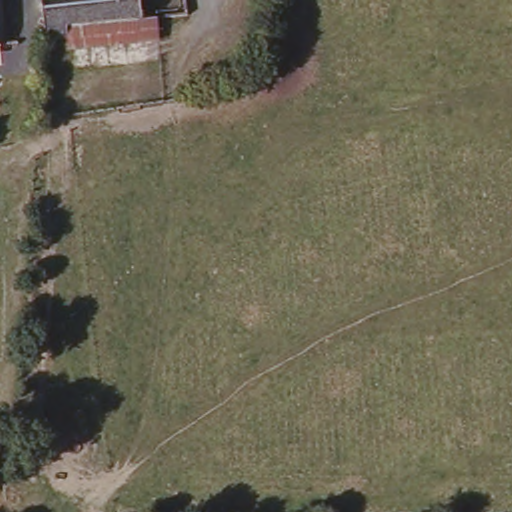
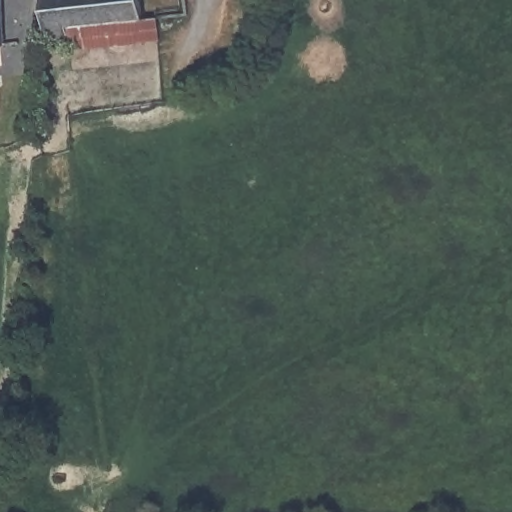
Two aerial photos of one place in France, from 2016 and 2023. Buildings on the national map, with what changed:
unchanged [(0,50),(0,0),(1,0),(0,50)]
unchanged [(65,27),(66,38),(43,41),(39,0),(137,0),(139,20),(65,27)]
unchanged [(153,17),(155,40),(67,50),(66,38),(65,27),(139,20),(153,17)]

